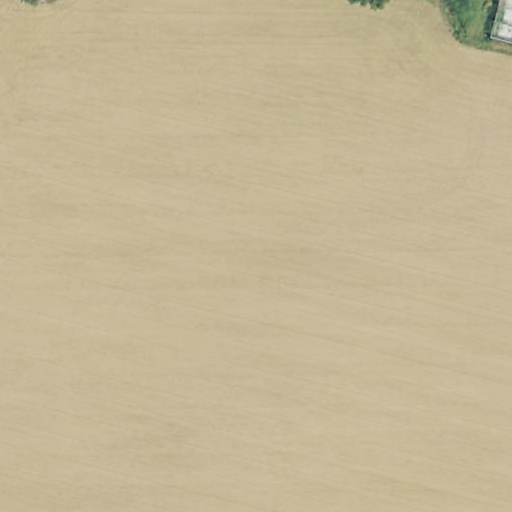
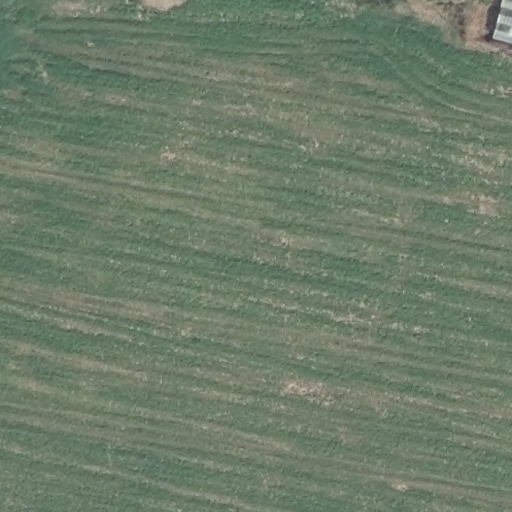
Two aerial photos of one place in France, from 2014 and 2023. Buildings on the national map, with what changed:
unchanged [(505,0),(512,0),(512,38),(496,34),(505,0)]

